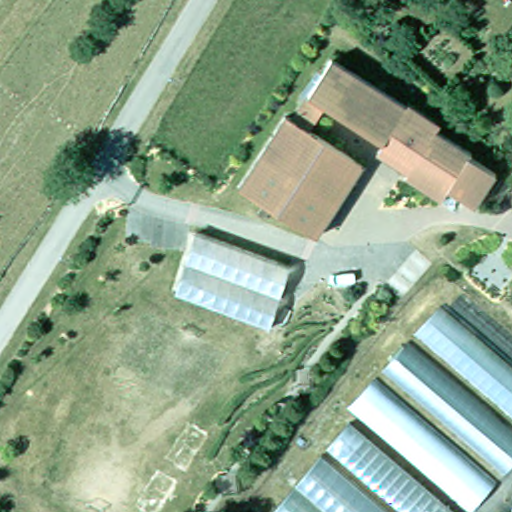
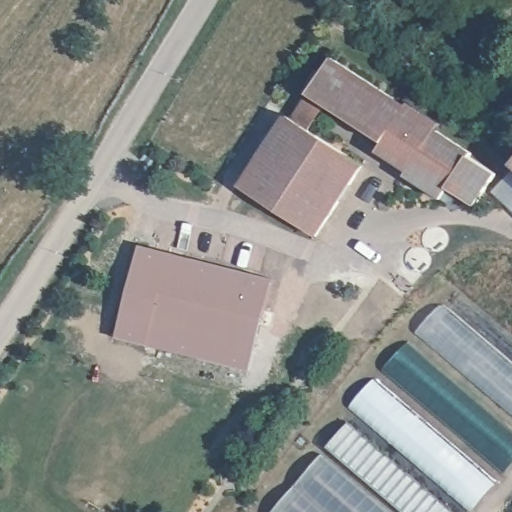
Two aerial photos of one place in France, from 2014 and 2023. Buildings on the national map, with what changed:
unchanged [(412,106),(418,98),(448,123),(442,129),(475,153),(472,157),(488,174),(481,184),(469,199),(450,185),(441,196),(408,170),(427,145),(399,124),(387,139),(335,99),(315,125),(362,164),(315,224),(243,169),(295,102),(300,106),(345,51),(412,106)]
new [(273,277),(250,371),(117,338),(140,245),(273,277)]
unchanged [(423,326),(451,293),(512,353),(512,410),(423,326)]
unchanged [(505,472),(387,365),(414,336),(512,426),(512,465),(505,472)]
unchanged [(471,509),(350,404),(377,374),(496,479),(471,509)]
unchanged [(330,444),(351,419),(458,512),(409,512),(330,444)]
unchanged [(323,451),(394,512),(268,512),(323,451)]

